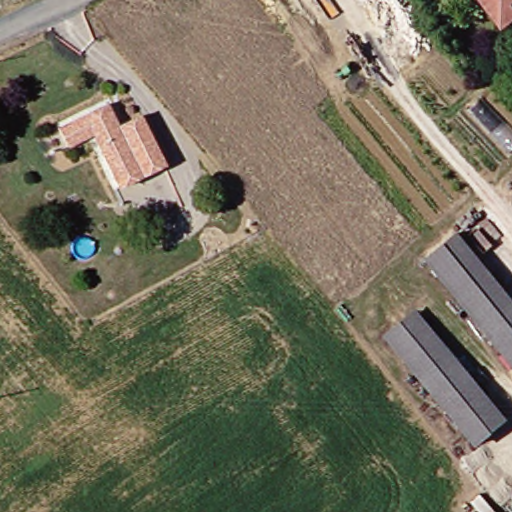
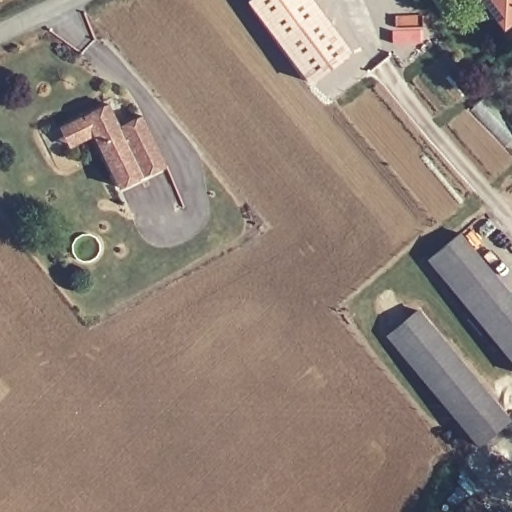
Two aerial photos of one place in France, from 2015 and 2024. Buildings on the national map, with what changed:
new [(249,3),(252,0),(314,0),(355,53),(311,85),(249,3)]
unchanged [(492,14),(482,0),(512,0),(512,26),(507,30),(492,14)]
unchanged [(112,109),(122,128),(142,119),(164,171),(120,187),(97,138),(76,144),(70,147),(63,128),(69,126),(112,109)]
unchanged [(462,234),(512,297),(512,368),(430,264),(462,234)]
unchanged [(389,341),(420,312),(502,411),(507,407),(512,411),(512,421),(481,449),(389,341)]

